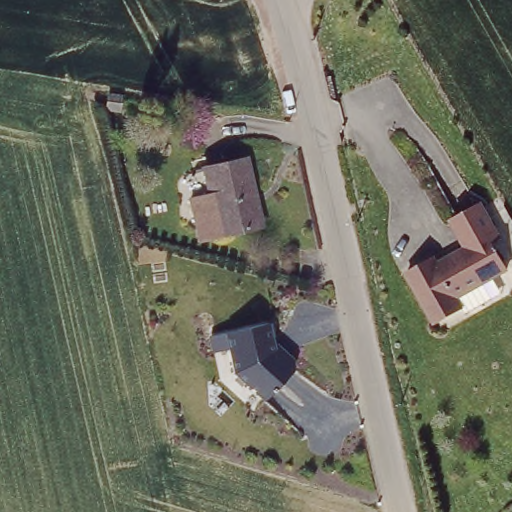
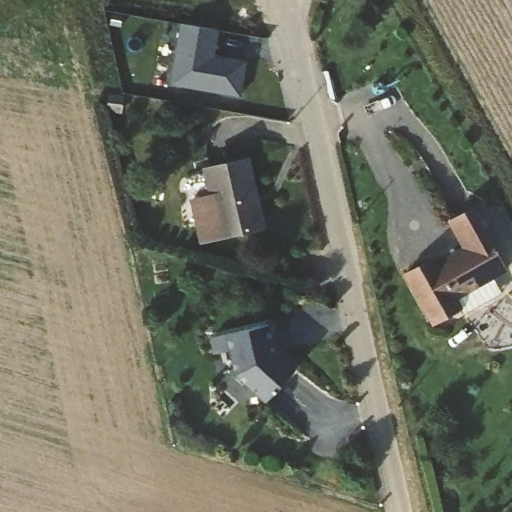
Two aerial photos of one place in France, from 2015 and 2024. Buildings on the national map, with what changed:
new [(179,25),(218,32),(214,55),(246,61),(240,97),(169,84),(179,25)]
unchanged [(197,204),(213,200),(207,172),(250,162),(257,198),(255,199),(262,231),(222,241),(207,245),(197,204)]
unchanged [(405,273),(435,256),(437,261),(463,246),(449,220),(484,201),(502,239),(493,244),(507,271),(459,299),(463,309),(433,326),(405,273)]
unchanged [(214,355),(210,336),(227,334),(270,326),(276,345),(297,360),(297,370),(266,402),(234,376),(230,352),(214,355)]

